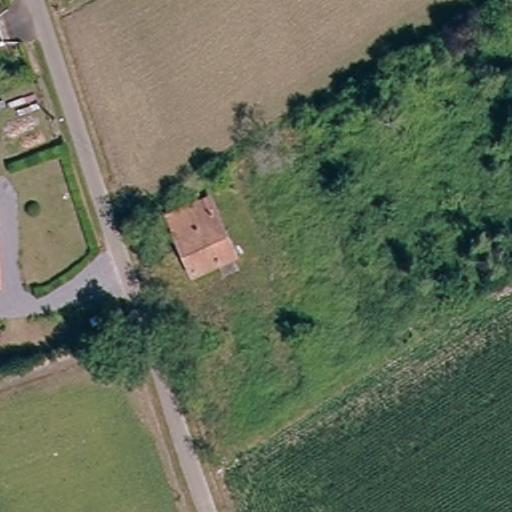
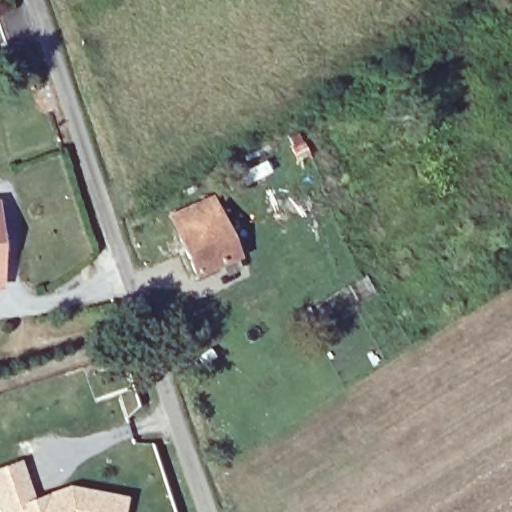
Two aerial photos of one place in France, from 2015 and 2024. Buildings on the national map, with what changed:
unchanged [(225,272),(217,257),(195,268),(170,211),(209,194),(234,250),(240,265),(225,272)]
new [(66,486),(126,498),(123,512),(0,512),(0,467),(20,460),(32,498),(66,486)]

